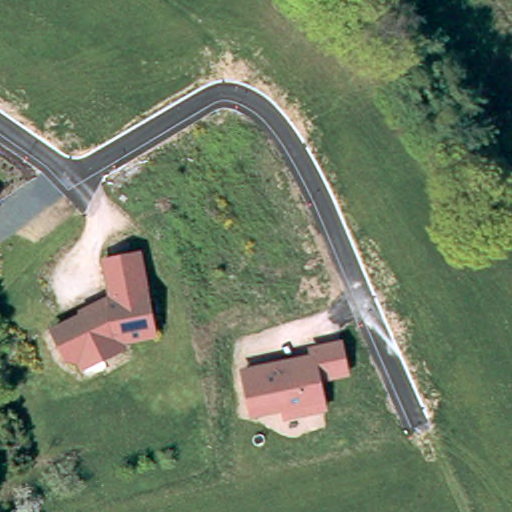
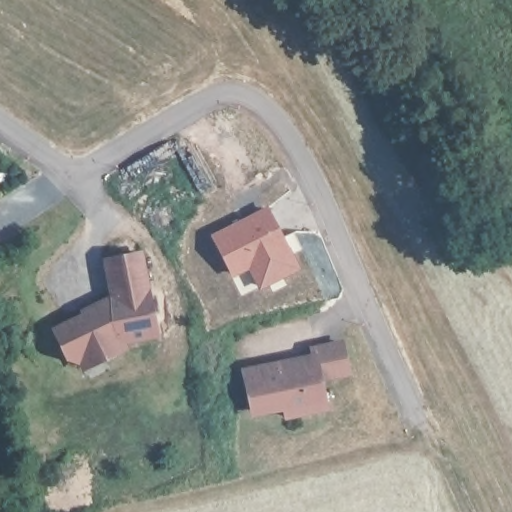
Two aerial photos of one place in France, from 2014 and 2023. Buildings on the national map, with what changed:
new [(267,206),(300,268),(260,291),(248,270),(233,278),(210,234),(267,206)]
unchanged [(78,357),(75,359),(71,357),(66,356),(53,328),(82,313),(81,310),(99,302),(102,300),(108,297),(111,297),(104,259),(139,253),(151,322),(153,333),(118,340),(121,347),(103,356),(81,366),(78,357)]
unchanged [(313,357),(311,347),(344,341),(350,377),(324,383),(330,411),(286,421),(283,411),(251,418),(245,372),(313,357)]

